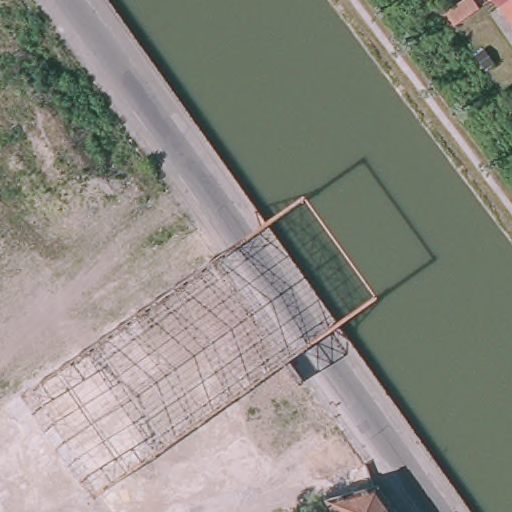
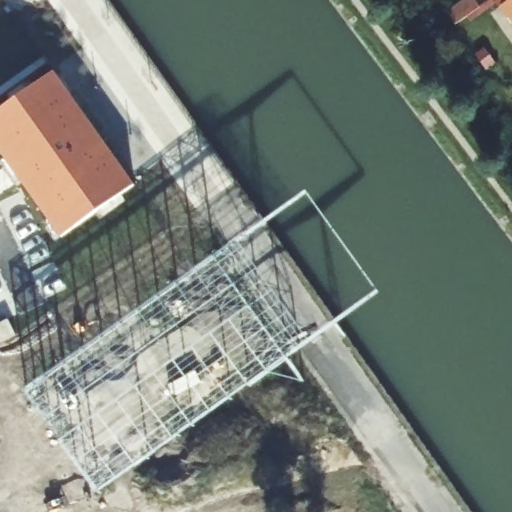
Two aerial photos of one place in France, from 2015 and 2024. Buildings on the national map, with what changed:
unchanged [(448,12),(465,0),(476,0),(480,6),(456,24),(448,12)]
unchanged [(500,4),(506,0),(512,0),(512,20),(500,4)]
new [(68,240),(0,147),(0,112),(51,73),(133,185),(68,240)]
new [(212,257),(289,360),(102,495),(27,392),(212,257)]
demolished [(337,434),(362,468),(310,479),(297,459),(337,434)]
demolished [(320,512),(319,512),(288,512),(287,507),(326,497),(375,485),(394,512),(321,512),(320,512)]

